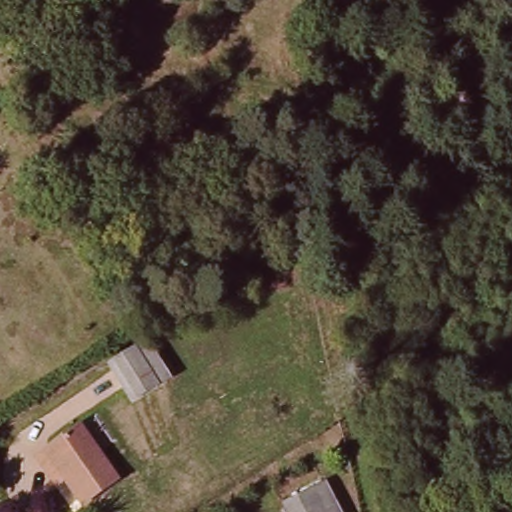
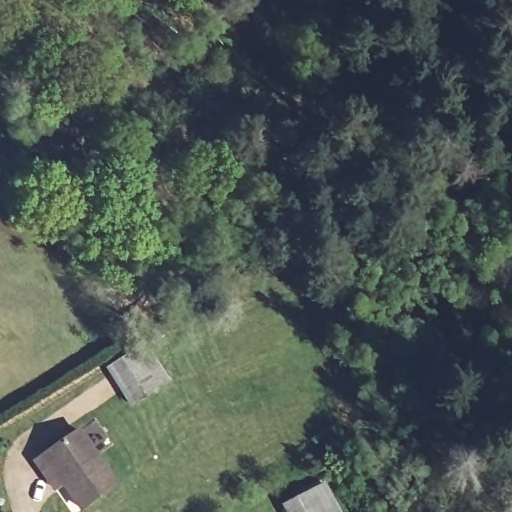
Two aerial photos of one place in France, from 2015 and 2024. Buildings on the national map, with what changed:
unchanged [(137,348),(164,386),(143,401),(115,365),(137,348)]
unchanged [(81,509),(47,459),(82,435),(117,486),(81,509)]
unchanged [(286,506),(327,485),(342,512),(288,512),(286,506)]

